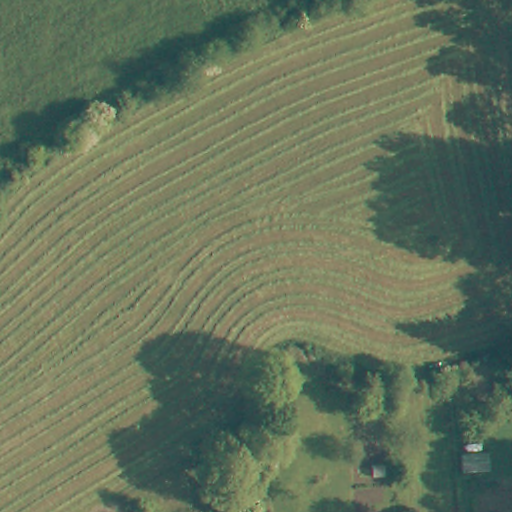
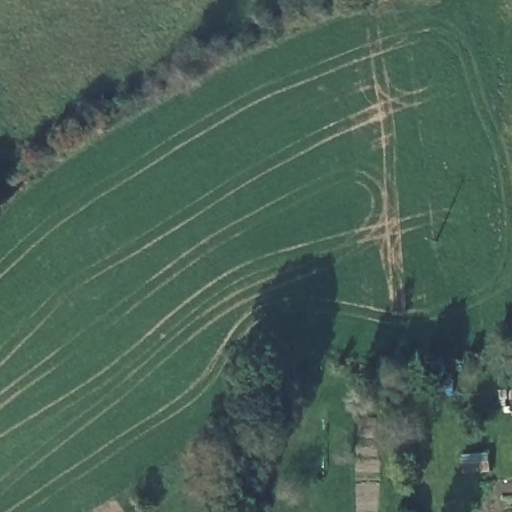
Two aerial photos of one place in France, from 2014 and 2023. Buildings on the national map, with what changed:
[]

